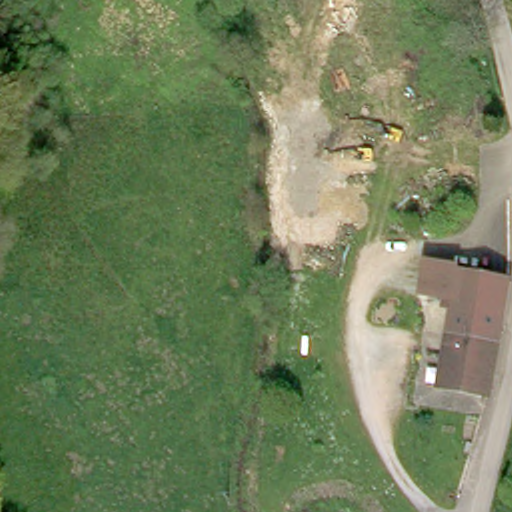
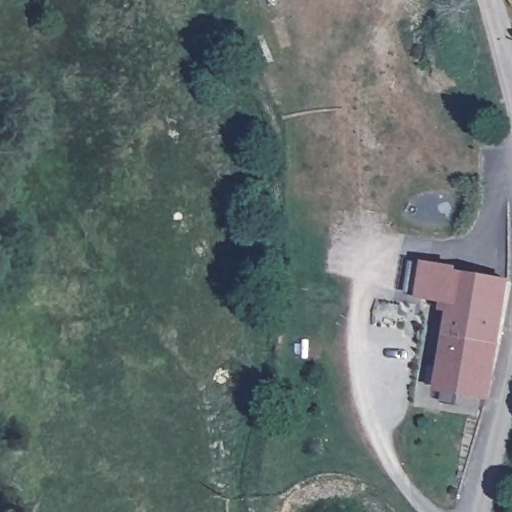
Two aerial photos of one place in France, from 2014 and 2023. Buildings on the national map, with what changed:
unchanged [(509,281),(490,380),(486,396),(440,388),(450,299),(430,297),(420,295),(424,263),(455,267),(455,272),(509,281)]

